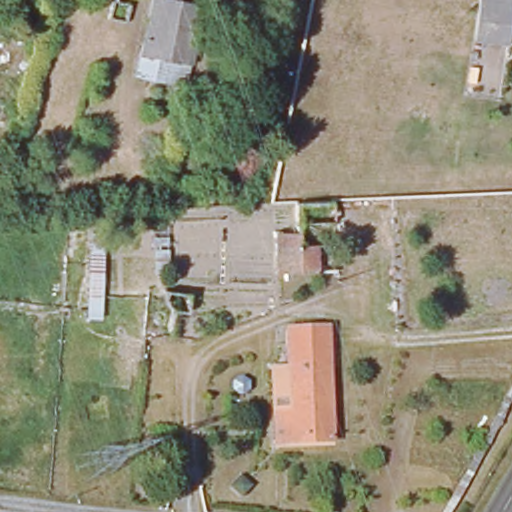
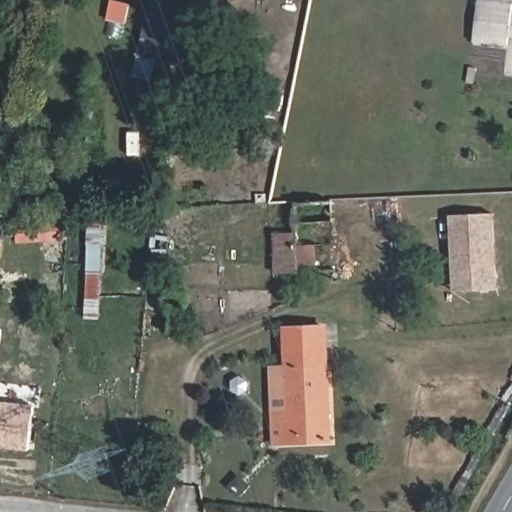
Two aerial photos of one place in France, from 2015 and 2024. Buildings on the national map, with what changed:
unchanged [(473,44),(477,0),(512,0),(512,13),(507,48),(473,44)]
unchanged [(199,20),(187,76),(135,64),(147,8),(199,20)]
new [(497,290),(453,292),(450,214),(493,212),(497,290)]
unchanged [(317,223),(319,294),(261,293),(260,293),(258,253),(263,254),(265,223),(317,223)]
unchanged [(102,234),(99,321),(85,321),(87,233),(102,234)]
unchanged [(280,445),(280,417),(287,417),(285,330),(325,329),(329,443),(280,445)]
new [(0,448),(0,402),(36,406),(30,452),(0,448)]

